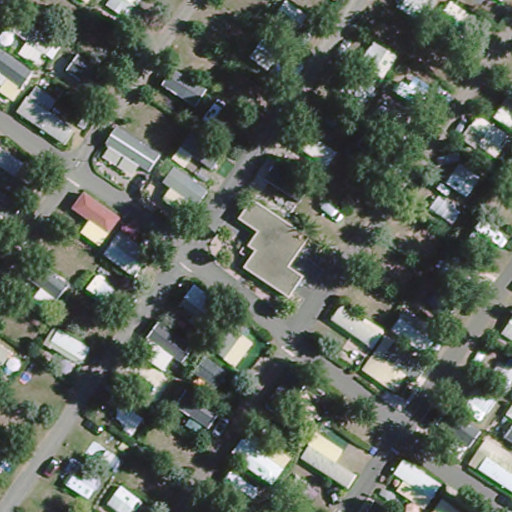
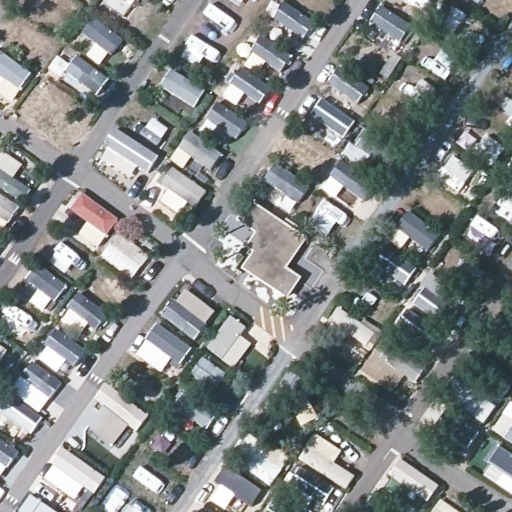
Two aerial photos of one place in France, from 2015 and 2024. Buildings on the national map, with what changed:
unchanged [(306,233),(285,265),(301,274),(288,297),(235,263),(250,241),(234,224),(250,197),(306,233)]

